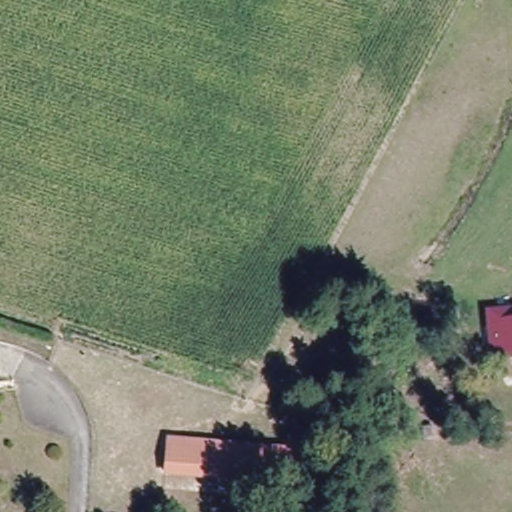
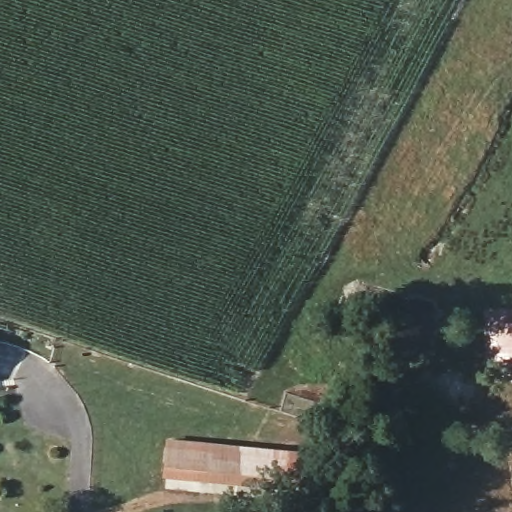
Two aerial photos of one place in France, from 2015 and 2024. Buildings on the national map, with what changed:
unchanged [(505,374),(491,373),(487,323),(512,322),(512,387),(506,387),(505,374)]
unchanged [(168,446),(298,450),(298,486),(168,482),(168,446)]

